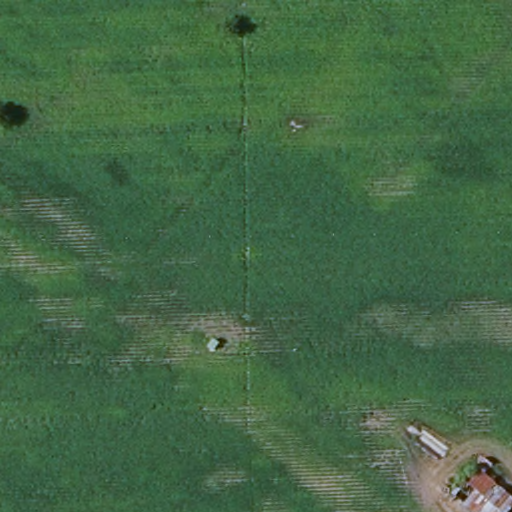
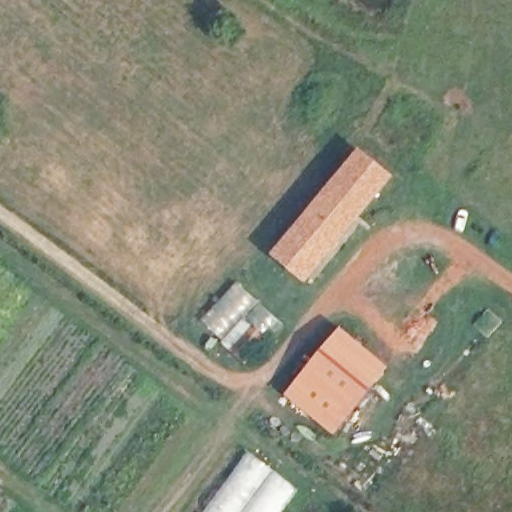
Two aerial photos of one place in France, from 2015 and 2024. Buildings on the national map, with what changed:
new [(360,147),(395,177),(306,285),(270,255),(360,147)]
new [(340,326),(390,368),(334,435),(284,395),(340,326)]
new [(247,452),(298,488),(280,512),(202,512),(247,452)]
demolished [(468,465),(511,502),(504,512),(464,512),(445,495),(468,465)]

